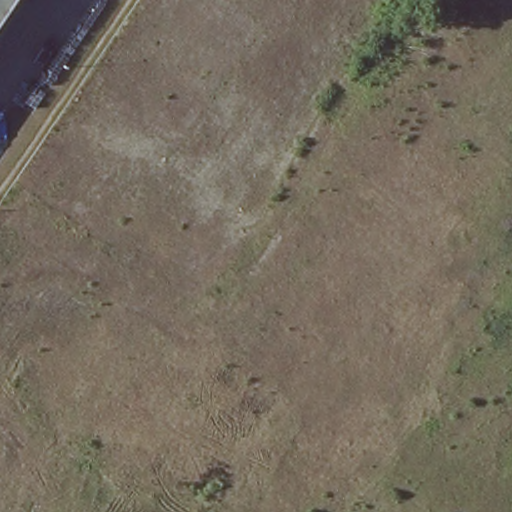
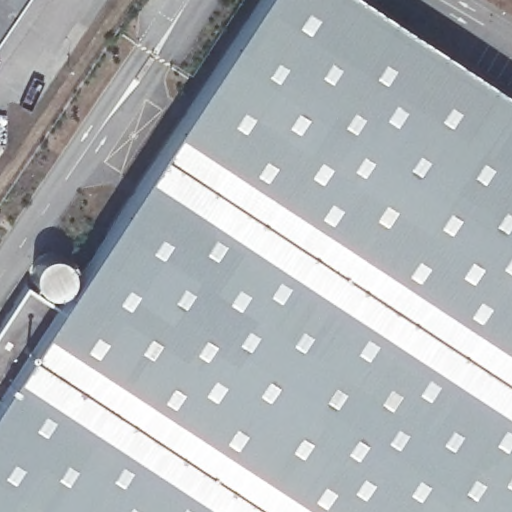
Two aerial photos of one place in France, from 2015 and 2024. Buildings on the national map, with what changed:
unchanged [(0,0),(17,0),(0,26),(0,0)]
new [(38,292),(33,285),(30,274),(35,264),(43,257),(51,255),(62,257),(70,264),(78,277),(261,0),(360,0),(512,99),(512,512),(0,512),(0,323),(24,285),(34,293),(38,292)]

